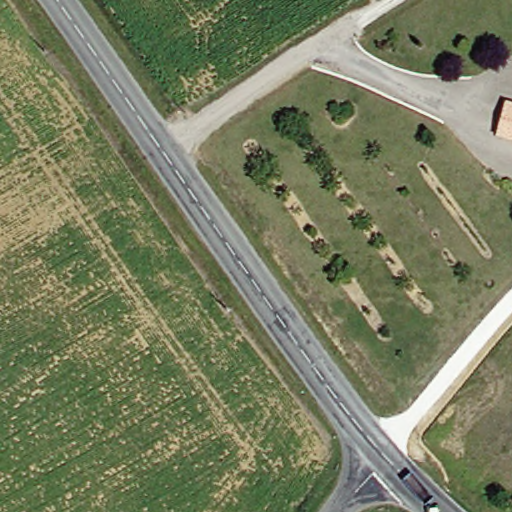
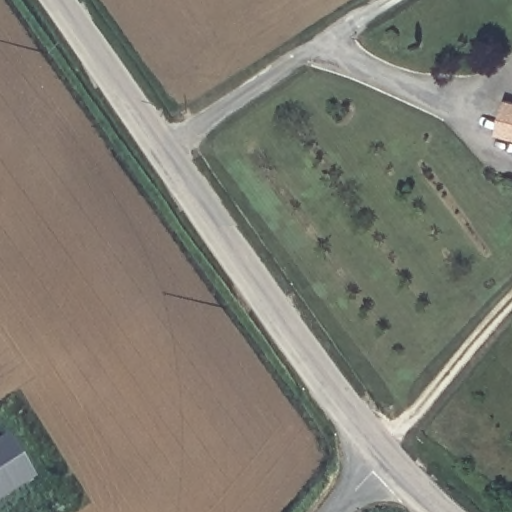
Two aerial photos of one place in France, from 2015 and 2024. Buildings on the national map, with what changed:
unchanged [(512,138),(493,132),(507,96),(512,98),(512,138)]
new [(32,480),(0,500),(0,440),(5,437),(32,480)]

